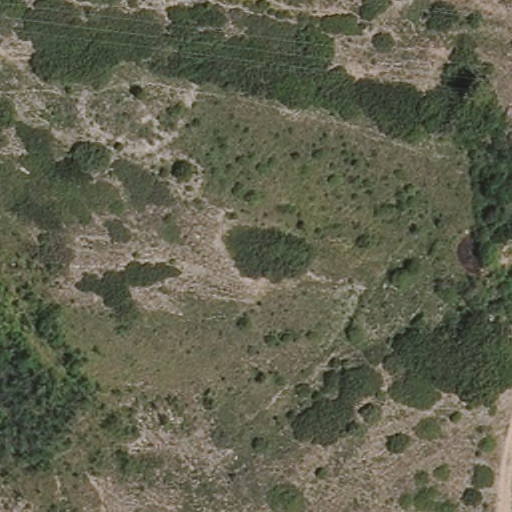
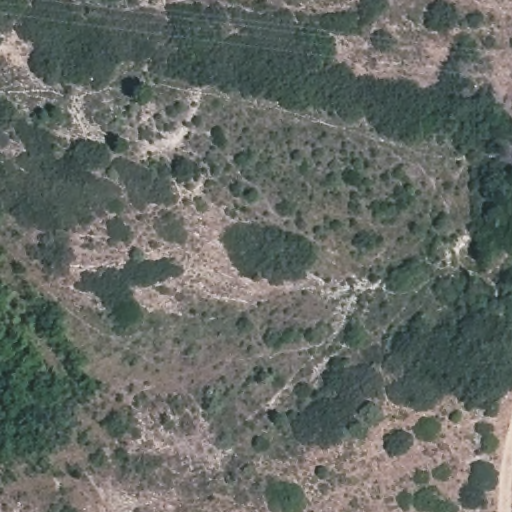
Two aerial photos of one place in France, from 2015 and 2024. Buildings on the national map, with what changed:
[]

